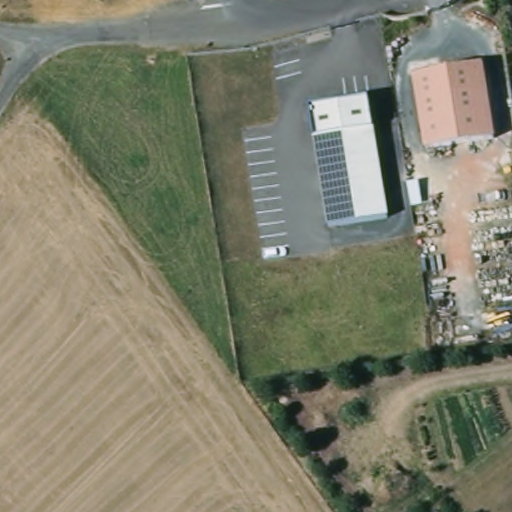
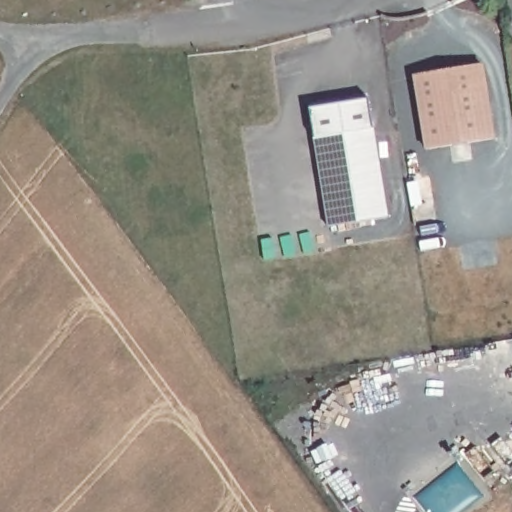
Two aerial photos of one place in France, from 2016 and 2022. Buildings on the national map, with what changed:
unchanged [(483,73),(495,147),(482,149),(470,75),(483,73)]
unchanged [(470,75),(482,149),(429,158),(417,84),(470,75)]
unchanged [(368,98),(388,217),(328,226),(309,107),(368,98)]

